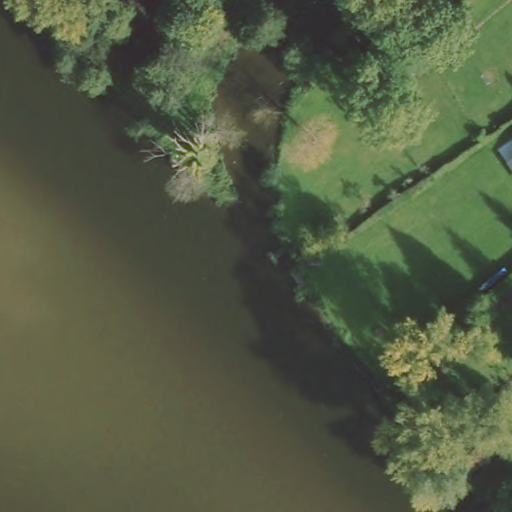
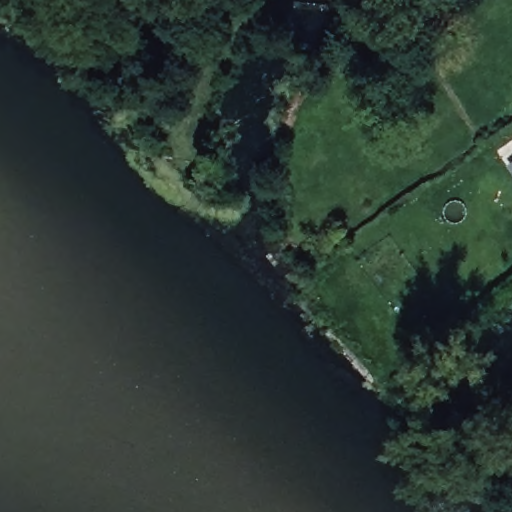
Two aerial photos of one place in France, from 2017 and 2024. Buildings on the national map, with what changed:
[]

